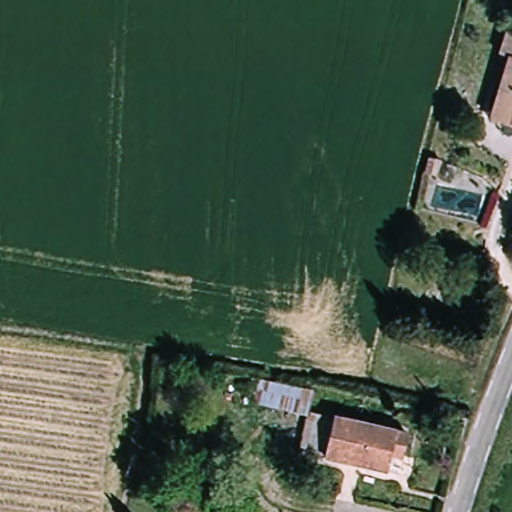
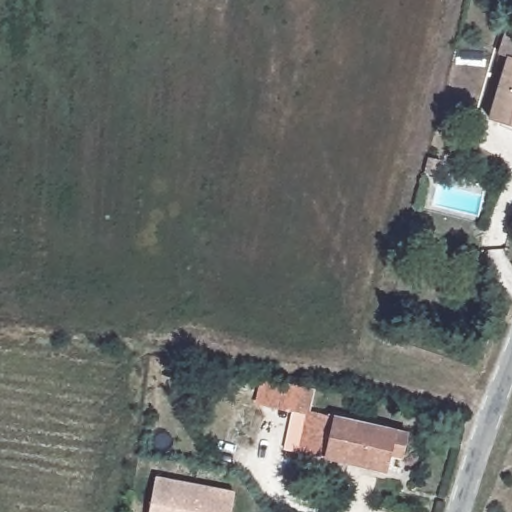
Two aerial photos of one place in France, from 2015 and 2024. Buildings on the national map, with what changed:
unchanged [(512,33),(512,56),(505,54),(512,33)]
unchanged [(512,64),(512,126),(494,120),(512,64)]
unchanged [(465,166),(462,182),(451,179),(455,163),(465,166)]
unchanged [(316,390),(313,412),(248,402),(252,379),(316,390)]
unchanged [(406,457),(395,455),(392,471),(305,457),(282,451),(291,409),(313,412),(410,430),(406,457)]
new [(235,492),(231,512),(149,512),(155,477),(235,492)]

